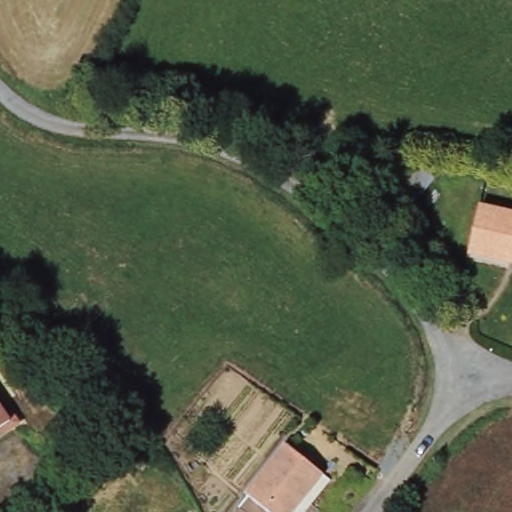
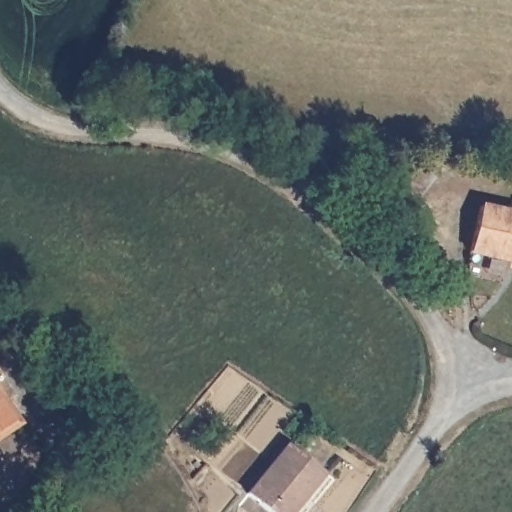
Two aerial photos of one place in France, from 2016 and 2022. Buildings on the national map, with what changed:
unchanged [(395,175),(412,155),(435,175),(406,208),(389,194),(391,185),(370,168),(377,161),(395,175)]
unchanged [(480,201),(512,208),(512,259),(469,250),(480,201)]
unchanged [(10,421),(0,428),(0,405),(10,421)]
unchanged [(277,512),(245,490),(286,444),(323,470),(290,512),(277,512)]

